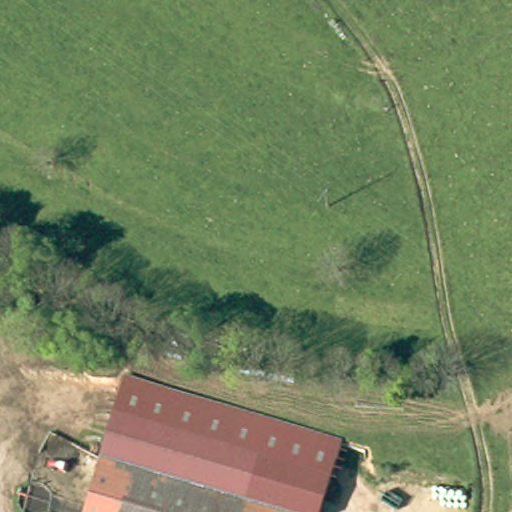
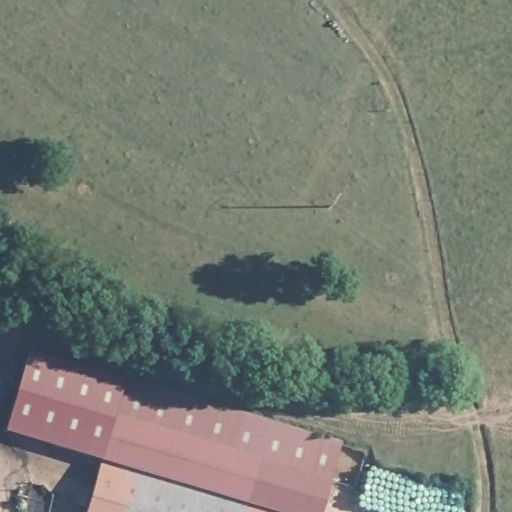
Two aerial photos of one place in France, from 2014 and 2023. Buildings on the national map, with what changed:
new [(107,458),(5,430),(30,348),(134,379),(107,458)]
unchanged [(240,412),(227,457),(258,467),(243,512),(234,512),(233,512),(105,465),(134,379),(240,412)]
unchanged [(342,442),(328,488),(258,467),(227,457),(240,412),(342,442)]
unchanged [(233,512),(234,512),(88,512),(105,465),(233,512)]
unchanged [(328,488),(321,512),(243,512),(258,467),(328,488)]

